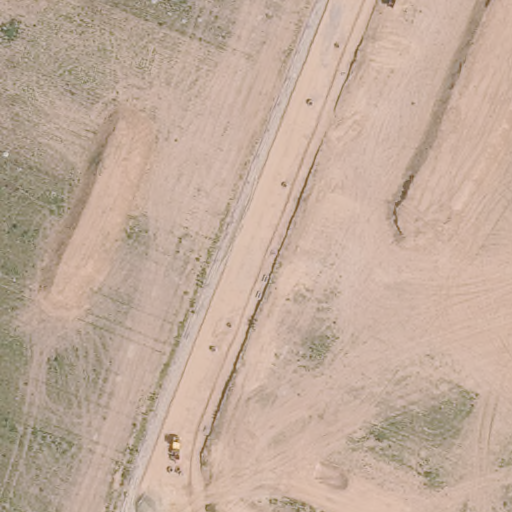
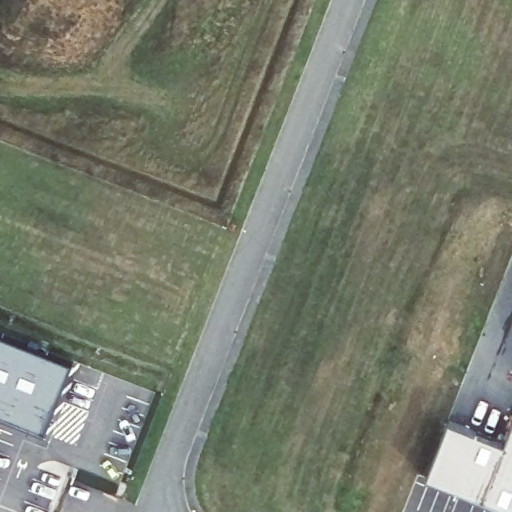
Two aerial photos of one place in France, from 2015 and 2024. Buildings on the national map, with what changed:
new [(68,370),(40,442),(0,427),(0,344),(68,370)]
new [(503,437),(512,415),(512,509),(424,474),(447,416),(503,437)]

